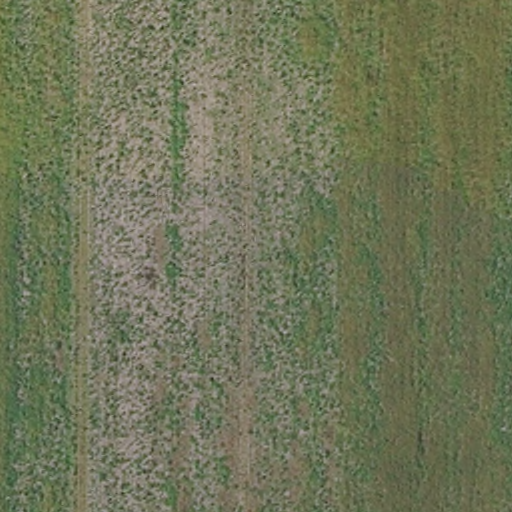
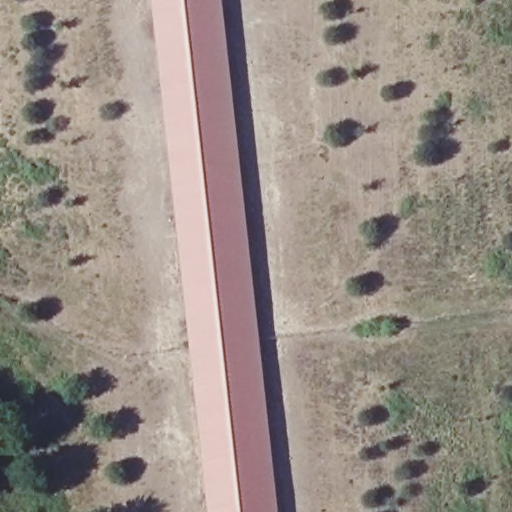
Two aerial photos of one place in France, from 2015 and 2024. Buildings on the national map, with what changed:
new [(154,0),(224,0),(280,512),(210,512),(154,0)]

